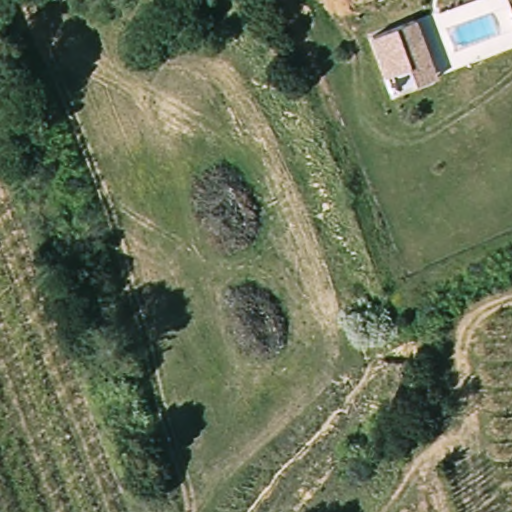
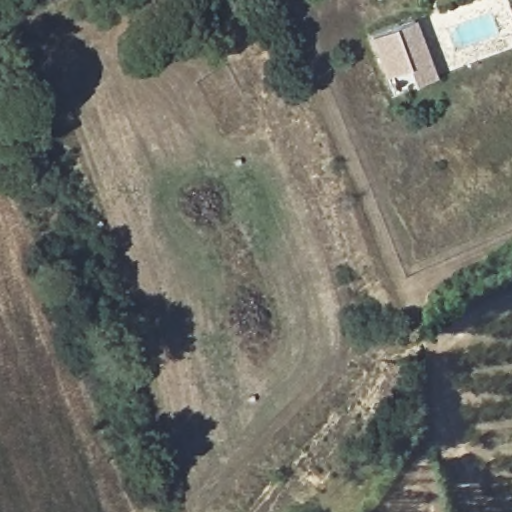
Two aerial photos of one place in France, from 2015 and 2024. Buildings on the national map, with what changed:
unchanged [(412,19),(436,74),(417,82),(410,65),(385,75),(370,34),(412,19)]

